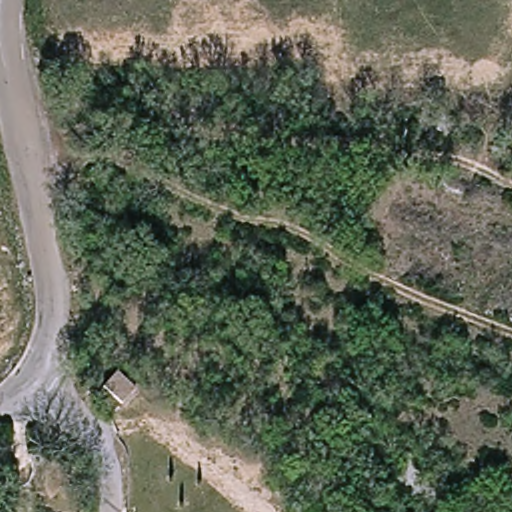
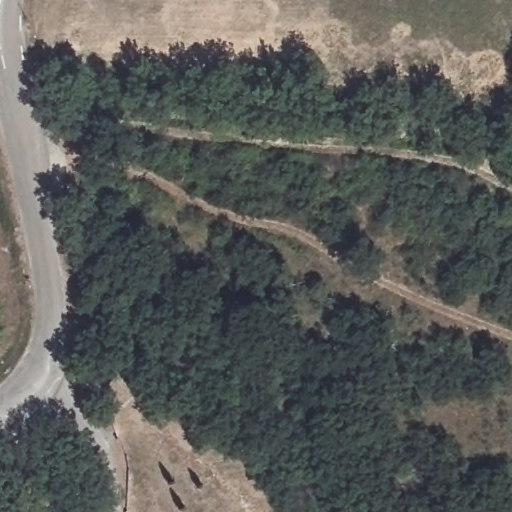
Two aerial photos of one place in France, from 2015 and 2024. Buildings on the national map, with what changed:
unchanged [(108,374),(115,397),(98,403),(90,380),(108,374)]

